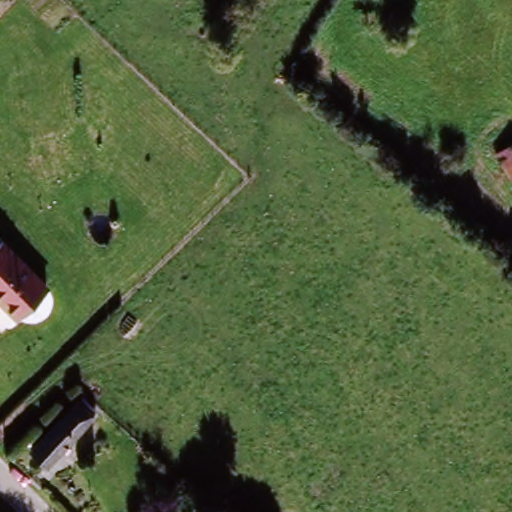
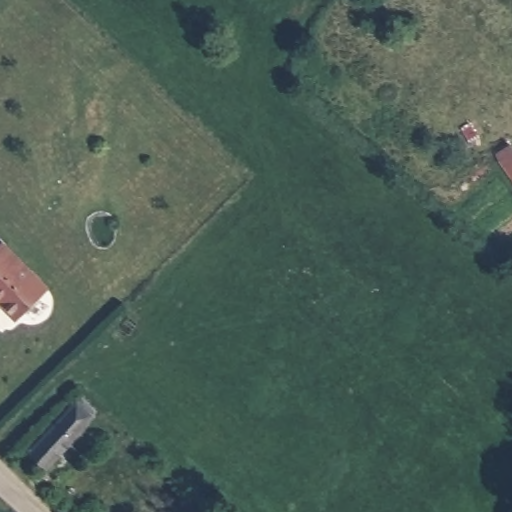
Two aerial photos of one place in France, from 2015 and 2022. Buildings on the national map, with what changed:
unchanged [(510,142),(512,145),(512,175),(496,153),(510,142)]
unchanged [(36,291),(6,321),(0,314),(0,255),(8,263),(36,291)]
unchanged [(93,411),(47,461),(31,448),(78,397),(93,411)]

